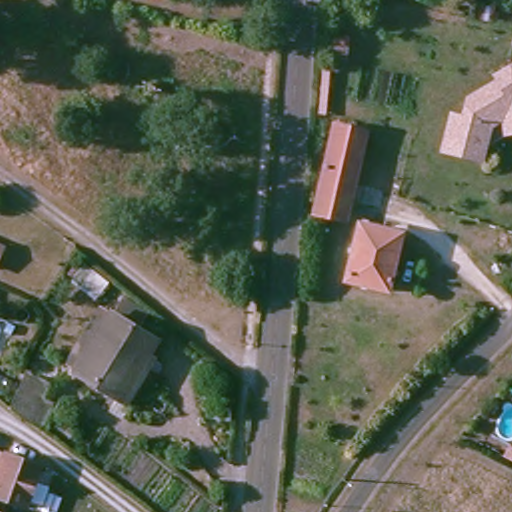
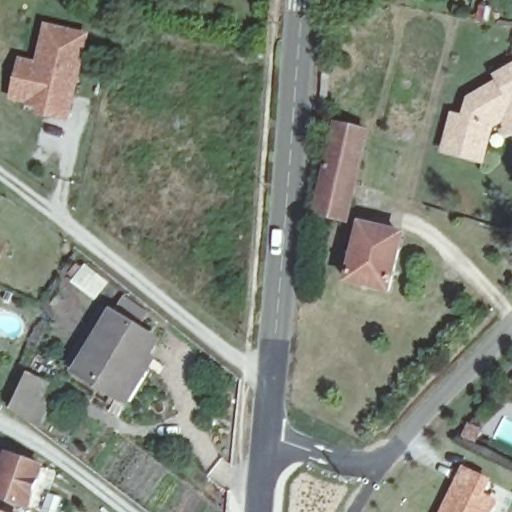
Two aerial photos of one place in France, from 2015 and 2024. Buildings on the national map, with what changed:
new [(69,122),(34,114),(36,107),(8,100),(18,57),(35,61),(44,22),(90,33),(69,122)]
unchanged [(497,117),(488,151),(451,141),(460,106),(471,109),(476,90),(507,72),(504,67),(512,62),(512,111),(512,108),(497,117)]
unchanged [(363,133),(340,223),(315,216),(336,126),(363,133)]
unchanged [(383,295),(343,286),(352,248),(355,234),(368,237),(394,243),(383,295)]
unchanged [(1,250),(0,251),(0,250),(1,250)]
unchanged [(156,339),(143,360),(151,365),(129,401),(70,365),(105,308),(156,339)]
unchanged [(46,391),(26,424),(4,409),(22,377),(46,391)]
unchanged [(2,441),(25,450),(21,461),(37,467),(23,505),(0,497),(0,446),(2,441)]
new [(461,464),(490,478),(484,492),(497,500),(491,512),(437,512),(461,464)]

